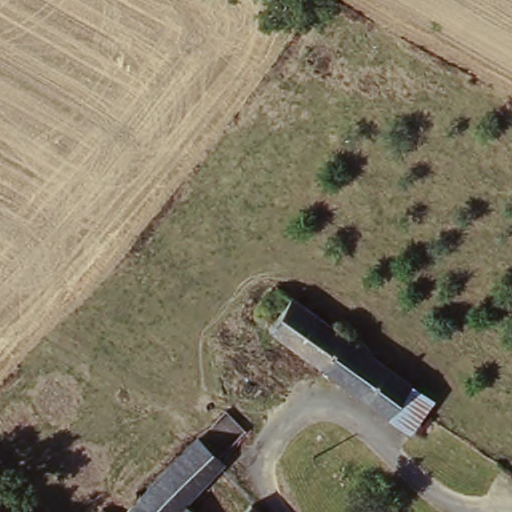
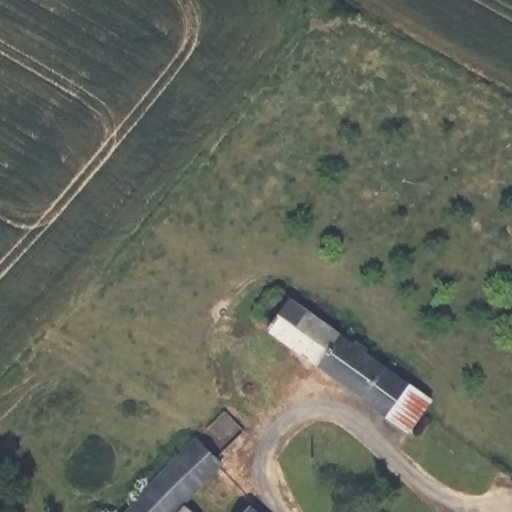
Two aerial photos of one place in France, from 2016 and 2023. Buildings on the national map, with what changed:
unchanged [(273,339),(277,332),(262,322),(283,295),(418,393),(395,426),(273,339)]
unchanged [(418,393),(439,408),(416,441),(395,426),(418,393)]
unchanged [(229,465),(189,507),(184,512),(135,512),(204,441),(229,465)]
unchanged [(195,512),(184,512),(189,507),(195,512)]
unchanged [(259,512),(251,512),(254,508),(259,512)]

